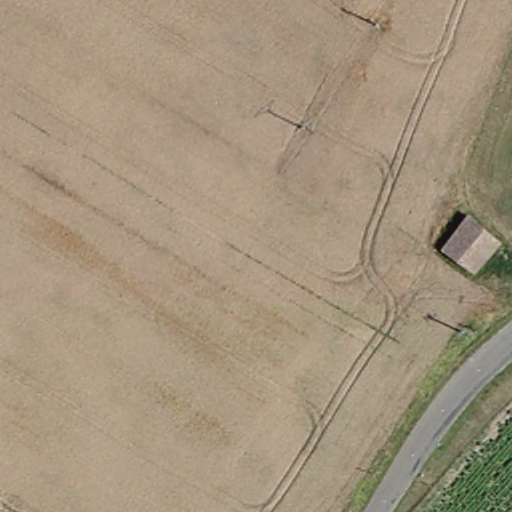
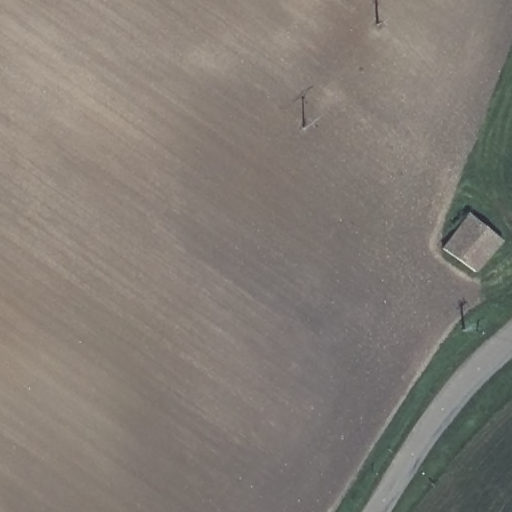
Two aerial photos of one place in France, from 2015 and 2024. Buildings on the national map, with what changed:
unchanged [(475,216),(507,242),(484,272),(451,248),(475,216)]

